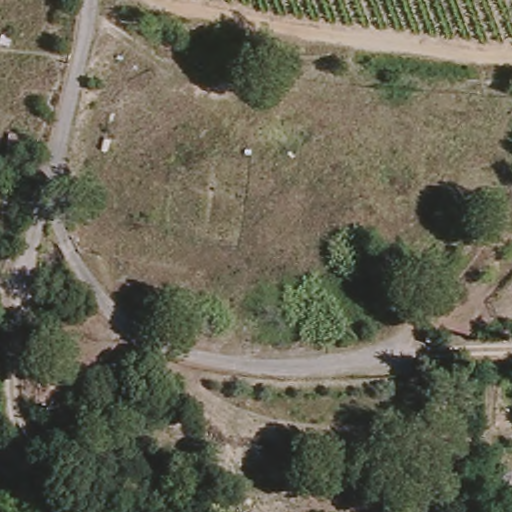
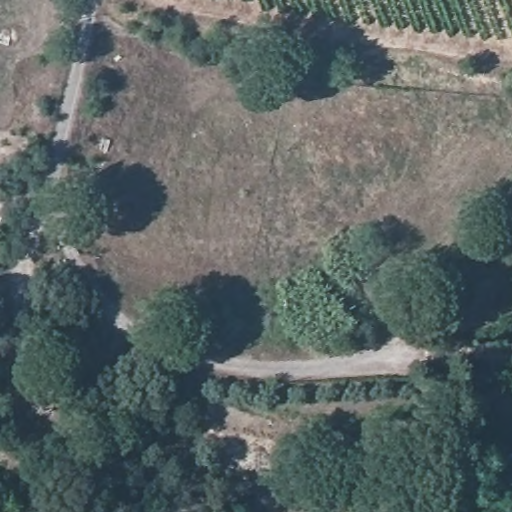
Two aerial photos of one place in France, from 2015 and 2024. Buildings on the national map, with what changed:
unchanged [(36,131),(31,156),(11,150),(16,129),(36,131)]

